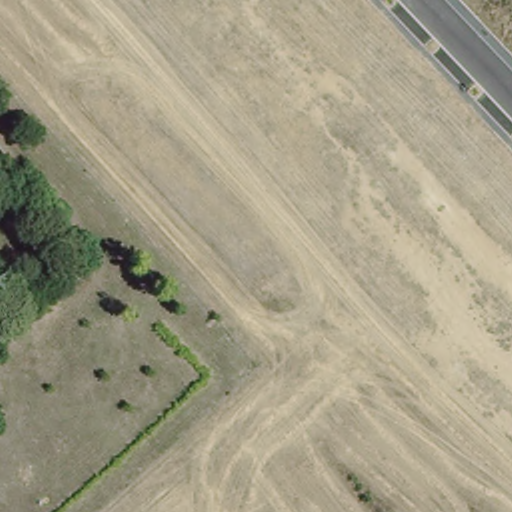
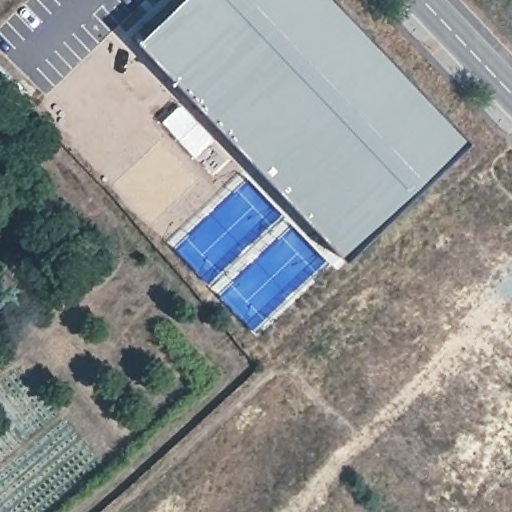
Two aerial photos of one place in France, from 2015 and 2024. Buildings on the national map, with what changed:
new [(134,38),(174,0),(333,0),(462,136),(338,254),(134,38)]

